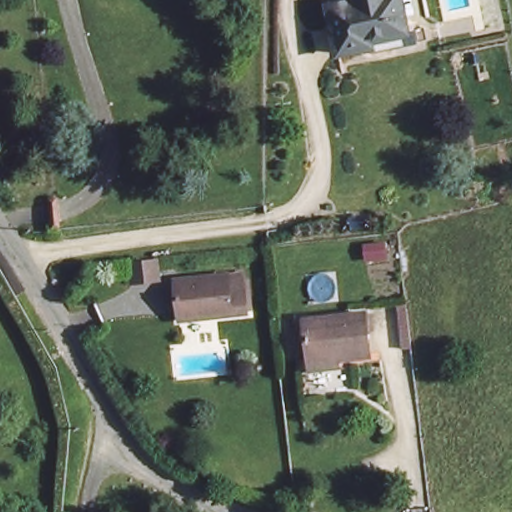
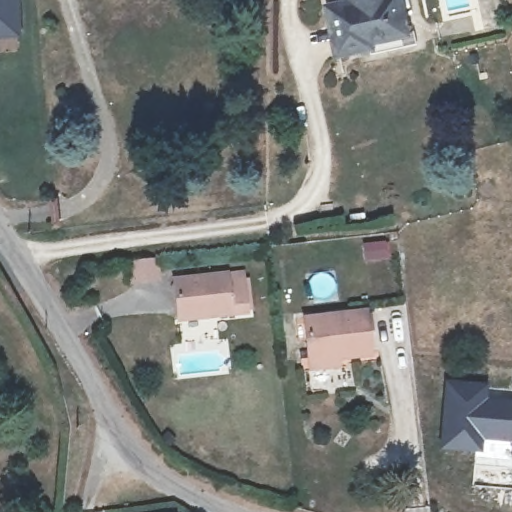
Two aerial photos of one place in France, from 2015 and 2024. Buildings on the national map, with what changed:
new [(0,38),(0,0),(20,0),(21,37),(0,38)]
unchanged [(407,17),(411,37),(366,45),(364,39),(331,46),(322,0),(394,0),(398,18),(407,17)]
unchanged [(159,270),(159,284),(136,286),(135,272),(159,270)]
unchanged [(174,278),(240,271),(246,270),(249,308),(244,308),(177,316),(174,278)]
unchanged [(309,366),(308,358),(303,316),(364,309),(369,352),(337,355),(338,363),(309,366)]
new [(444,379),(489,384),(489,394),(512,394),(512,391),(512,457),(508,456),(509,444),(484,443),(484,454),(438,451),(444,379)]

